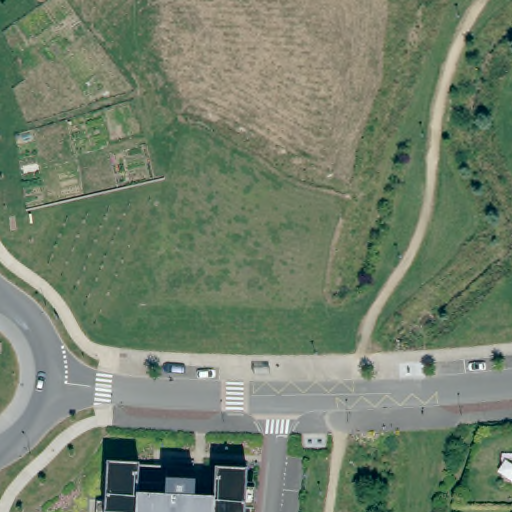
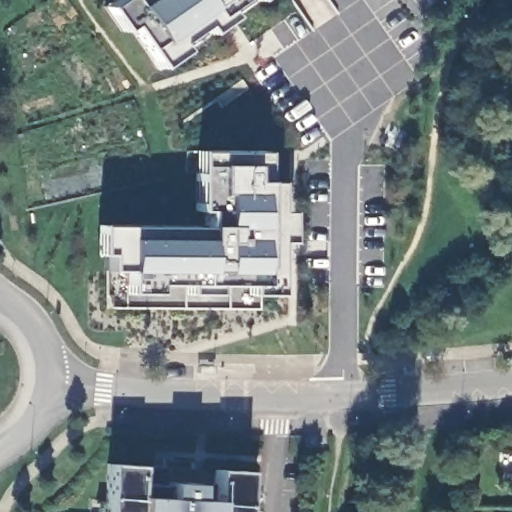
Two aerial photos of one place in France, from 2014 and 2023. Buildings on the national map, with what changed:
new [(121,30),(105,5),(113,0),(242,0),(226,11),(230,17),(206,34),(202,26),(176,44),(181,51),(158,68),(128,25),(121,30)]
new [(106,254),(97,254),(97,225),(202,224),(203,211),(196,211),(196,150),(262,151),(262,182),(274,182),(274,210),(286,212),(286,241),(279,242),(278,292),(246,293),(246,284),(213,284),(212,293),(183,293),(182,284),(156,284),(155,293),(126,293),(126,270),(107,270),(106,254)]
unchanged [(214,469),(246,472),(244,512),(104,512),(107,464),(167,467),(166,482),(213,484),(214,469)]

